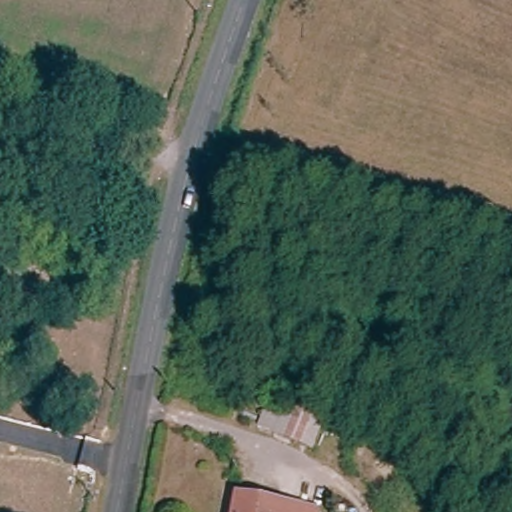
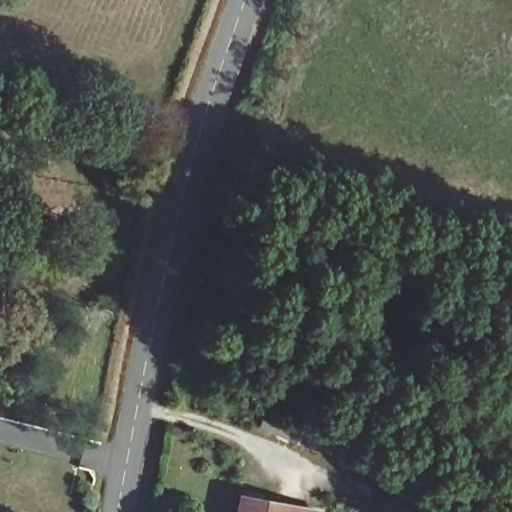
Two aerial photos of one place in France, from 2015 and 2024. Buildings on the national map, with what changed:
unchanged [(318,425),(304,451),(268,433),(282,404),(318,425)]
unchanged [(235,512),(237,500),(300,512),(235,512)]

